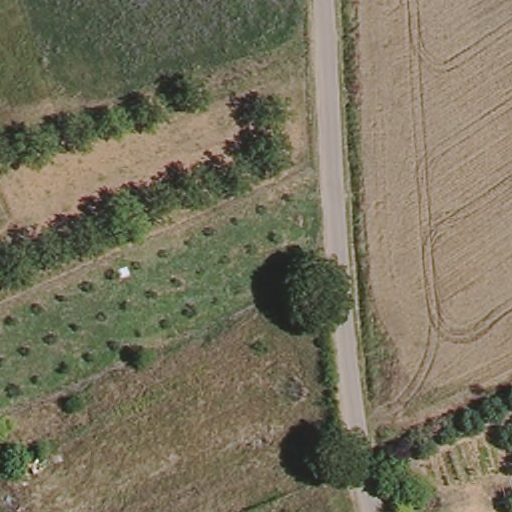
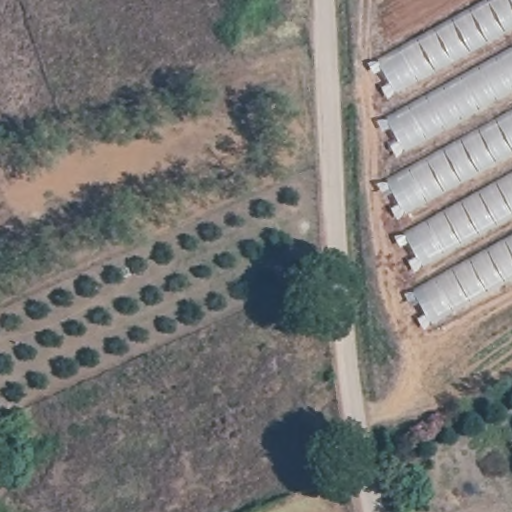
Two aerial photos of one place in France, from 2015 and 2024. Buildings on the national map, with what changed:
new [(430,279),(403,231),(413,225),(385,177),(412,163),(386,116),(403,106),(377,60),(485,0),(512,0),(512,282),(434,325),(413,288),(430,279)]

